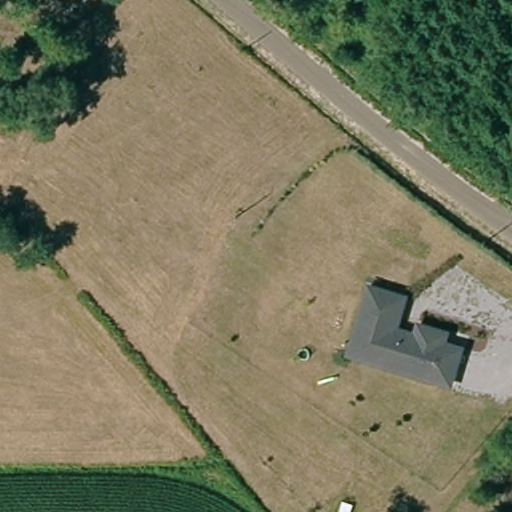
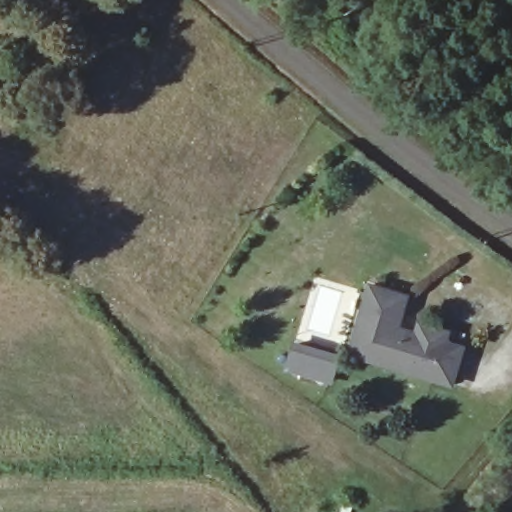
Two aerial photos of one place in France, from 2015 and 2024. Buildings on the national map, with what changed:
unchanged [(346,355),(368,284),(409,295),(403,327),(414,330),(417,321),(453,331),(449,339),(468,345),(454,387),(346,355)]
new [(284,372),(293,343),(340,356),(332,384),(284,372)]

